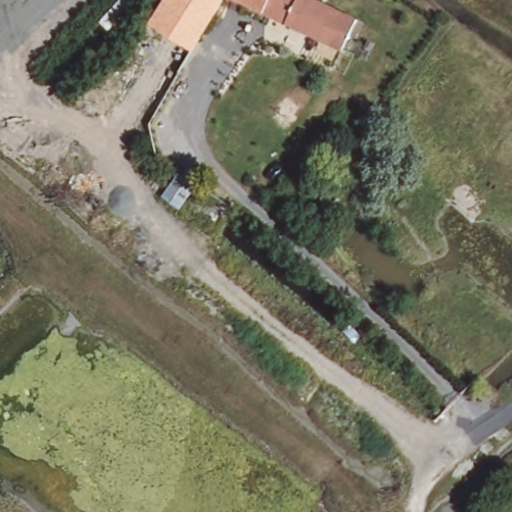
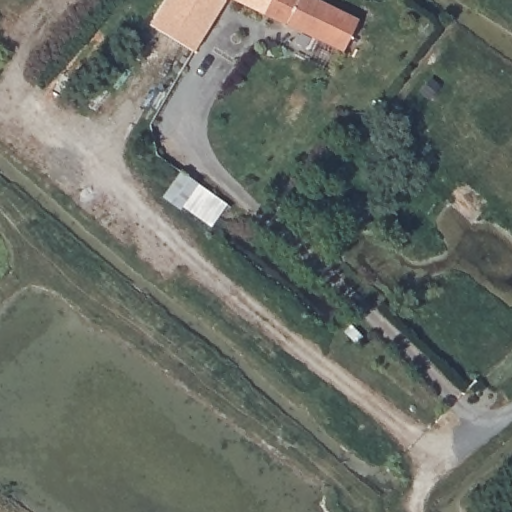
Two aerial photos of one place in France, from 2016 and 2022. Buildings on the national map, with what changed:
unchanged [(200,39),(193,53),(149,25),(164,0),(192,0),(177,24),(200,39)]
unchanged [(177,24),(192,0),(225,0),(200,39),(177,24)]
unchanged [(343,48),(342,52),(234,0),(313,0),(355,20),(343,48)]

